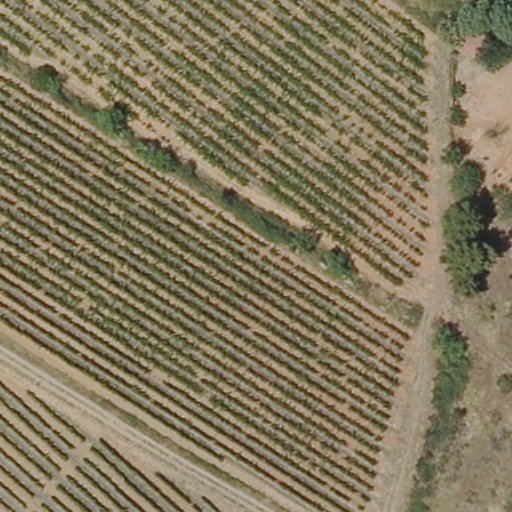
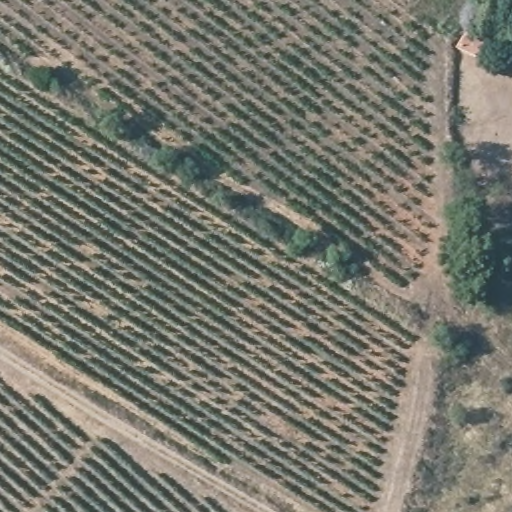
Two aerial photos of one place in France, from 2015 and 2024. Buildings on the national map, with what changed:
unchanged [(492,45),(472,62),(460,45),(480,31),(492,45)]

